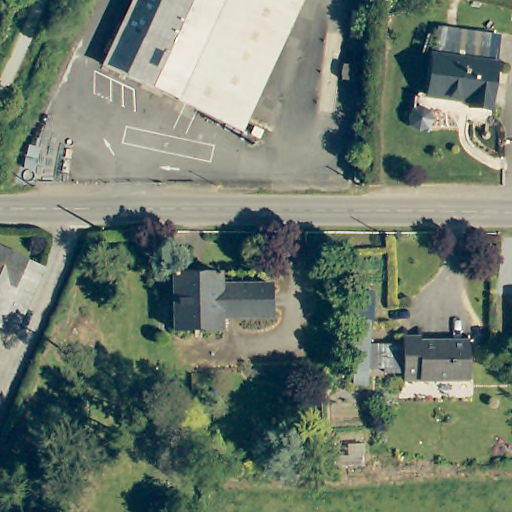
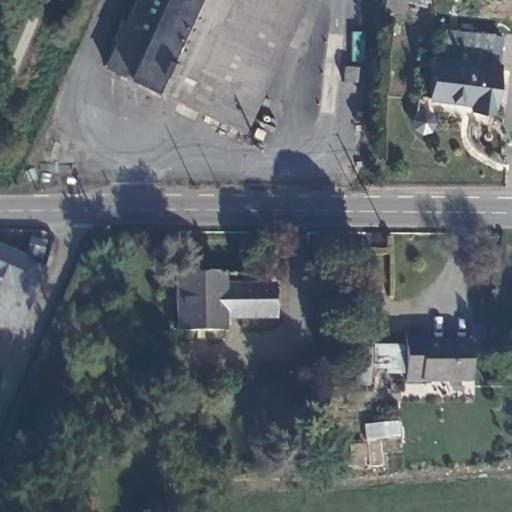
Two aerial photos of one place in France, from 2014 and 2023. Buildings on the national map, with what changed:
unchanged [(105,70),(136,0),(224,0),(192,72),(205,81),(195,109),(185,104),(105,70)]
unchanged [(192,72),(224,0),(299,0),(242,129),(195,109),(205,81),(192,72)]
unchanged [(492,32),(490,59),(502,61),(493,115),(470,111),(470,104),(427,96),(436,25),(492,32)]
unchanged [(46,263),(15,332),(0,325),(0,243),(46,263)]
unchanged [(219,270),(219,283),(275,284),(272,316),(220,317),(218,331),(170,330),(172,269),(219,270)]
unchanged [(362,368),(345,368),(348,324),(363,323),(362,368)]
unchanged [(434,335),(434,342),(447,341),(448,338),(466,339),(466,381),(411,382),(411,345),(407,343),(408,335),(434,335)]

